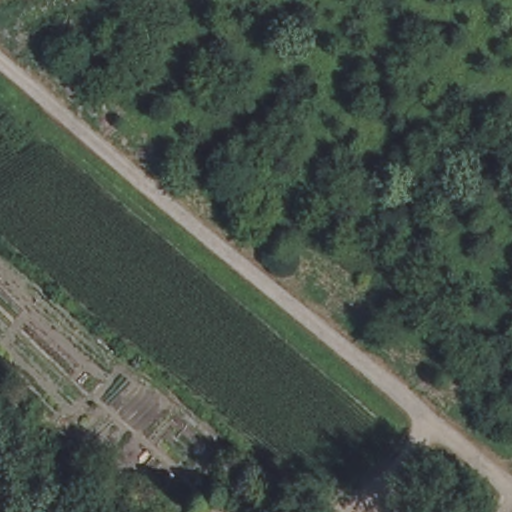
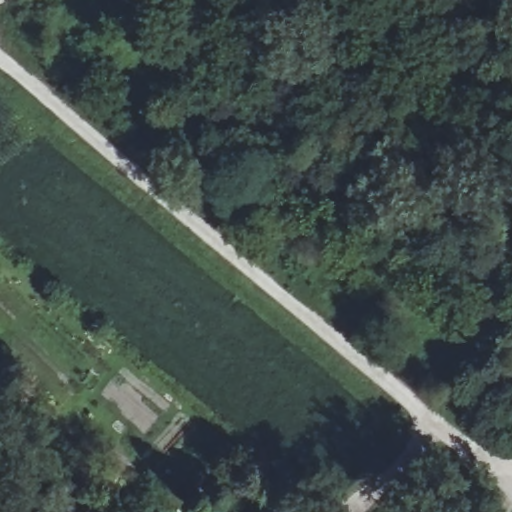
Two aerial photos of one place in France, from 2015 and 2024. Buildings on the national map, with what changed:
unchanged [(207,493),(227,512),(189,512),(207,493)]

